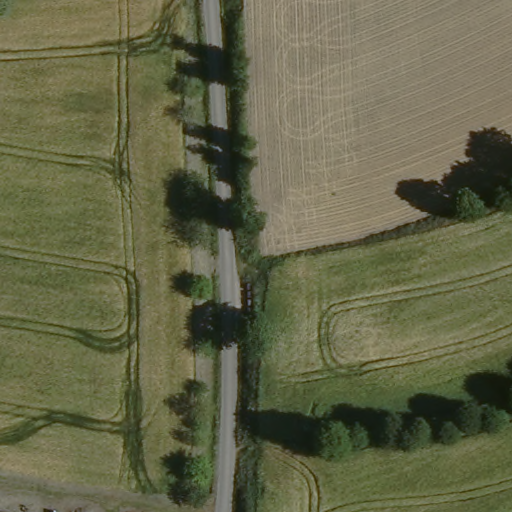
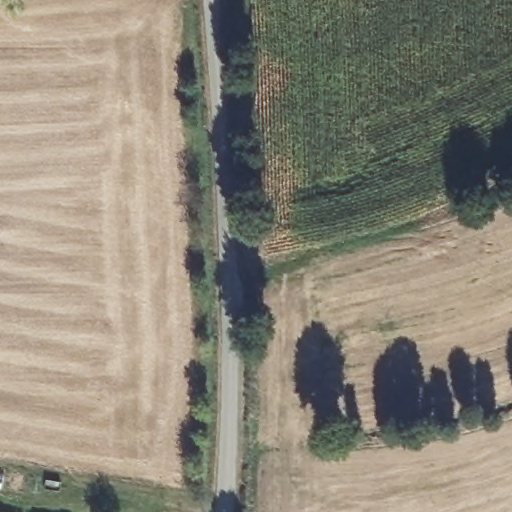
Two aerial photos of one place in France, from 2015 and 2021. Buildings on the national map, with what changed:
[]

